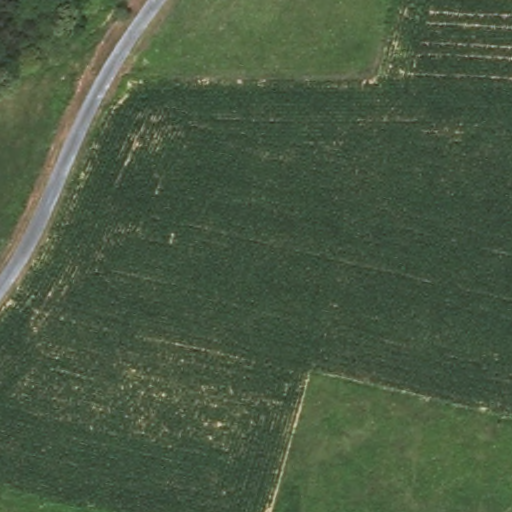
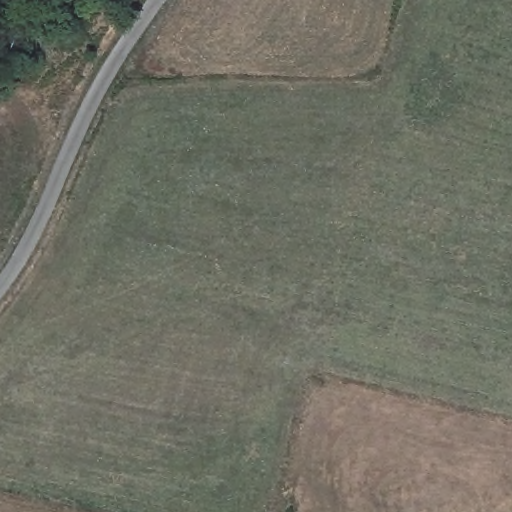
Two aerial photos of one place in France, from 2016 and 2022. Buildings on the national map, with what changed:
[]

